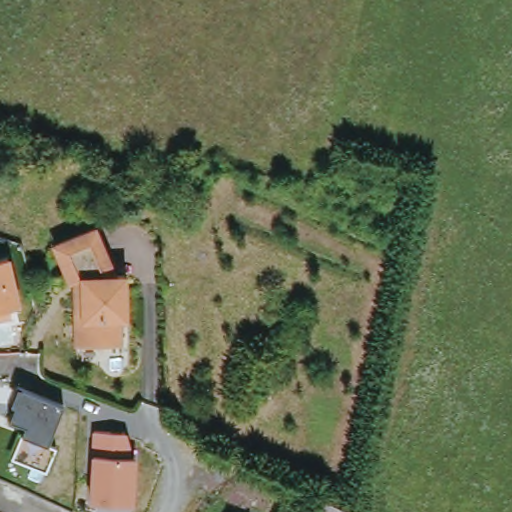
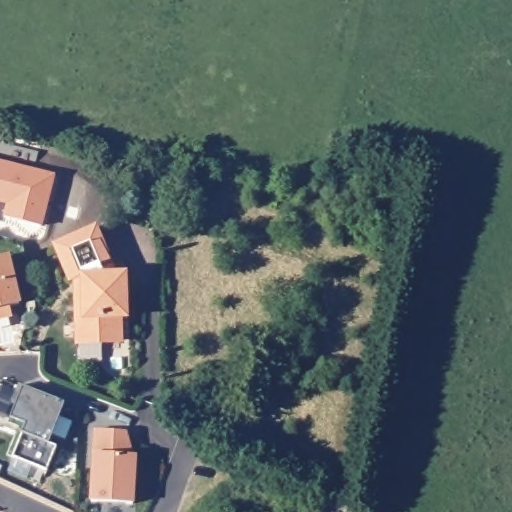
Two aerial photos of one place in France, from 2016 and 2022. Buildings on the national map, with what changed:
new [(54,180),(40,230),(4,219),(8,206),(0,203),(0,164),(54,180)]
unchanged [(97,223),(118,272),(127,272),(128,320),(123,320),(123,343),(72,343),(70,296),(51,243),(97,223)]
unchanged [(9,254),(21,303),(10,306),(12,316),(0,319),(0,256),(9,254)]
unchanged [(64,403),(48,444),(55,446),(45,472),(5,453),(18,422),(7,417),(13,402),(10,400),(16,384),(64,403)]
unchanged [(125,429),(133,455),(137,455),(135,505),(89,501),(92,428),(125,429)]
unchanged [(316,496),(353,512),(309,512),(316,496)]

